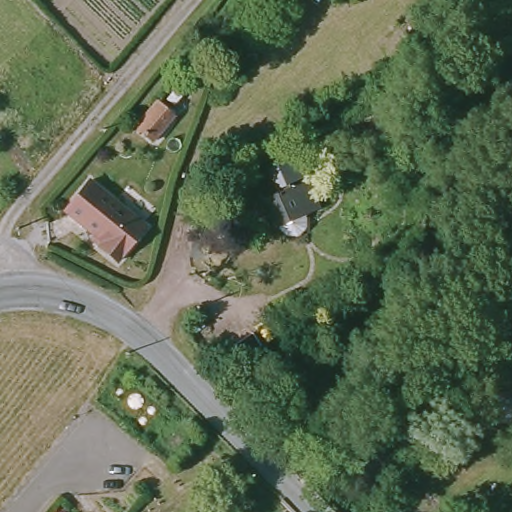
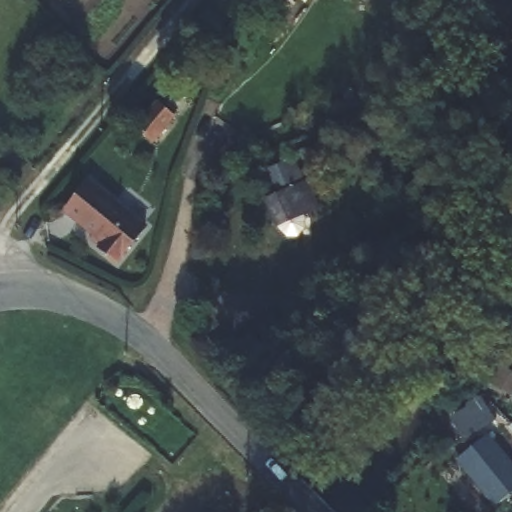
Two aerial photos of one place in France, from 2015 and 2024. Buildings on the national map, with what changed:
unchanged [(173,117),(152,143),(134,127),(155,102),(173,117)]
unchanged [(487,144),(477,151),(472,140),(482,133),(487,144)]
unchanged [(92,235),(62,212),(88,181),(144,227),(116,262),(97,248),(89,240),(92,235)]
unchanged [(319,209),(304,217),(301,212),(273,223),(263,200),(307,182),(319,209)]
unchanged [(227,350),(252,333),(267,357),(244,374),(227,350)]
unchanged [(510,394),(497,387),(501,381),(491,375),(497,365),(512,373),(512,391),(510,394)]
new [(457,460),(490,433),(512,462),(512,491),(494,505),(457,460)]

